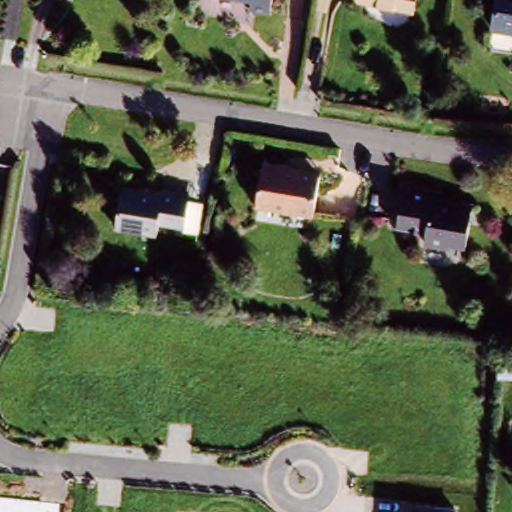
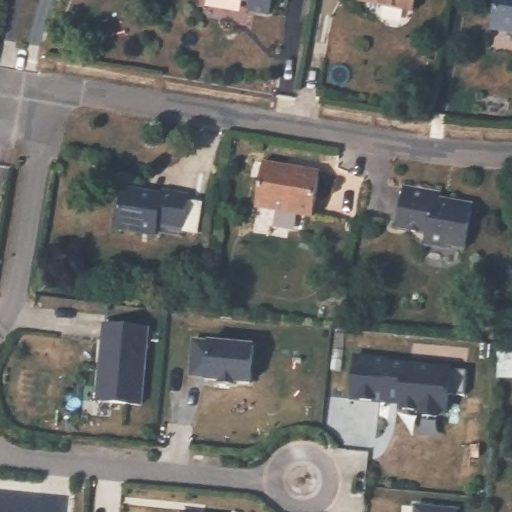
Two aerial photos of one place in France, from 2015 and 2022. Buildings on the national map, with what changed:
unchanged [(245,11),(248,0),(245,0),(270,0),(267,15),(245,11)]
unchanged [(351,4),(352,0),(410,0),(407,14),(351,4)]
unchanged [(488,31),(494,0),(512,0),(512,35),(488,31)]
unchanged [(249,207),(257,162),(280,165),(315,171),(313,177),(306,216),(249,207)]
unchanged [(433,195),(432,202),(445,205),(446,203),(466,206),(460,250),(443,248),(443,251),(418,247),(420,236),(390,231),(397,189),(433,195)]
unchanged [(156,197),(157,193),(183,197),(178,230),(153,225),(151,237),(110,231),(117,190),(156,197)]
new [(105,375),(106,375),(108,355),(106,355),(109,322),(153,326),(145,403),(102,399),(105,375)]
new [(198,340),(258,345),(255,382),(239,381),(239,383),(224,382),(224,380),(210,378),(210,376),(195,375),(198,340)]
unchanged [(498,379),(499,348),(512,349),(512,379),(498,379)]
new [(359,355),(391,359),(391,362),(467,370),(465,395),(450,393),(448,412),(443,412),(438,416),(425,415),(420,410),(403,407),(404,397),(388,396),(388,400),(355,397),(359,355)]
new [(59,512),(0,512),(0,498),(60,505),(59,512)]
unchanged [(415,505),(457,508),(457,512),(415,512),(415,505)]

